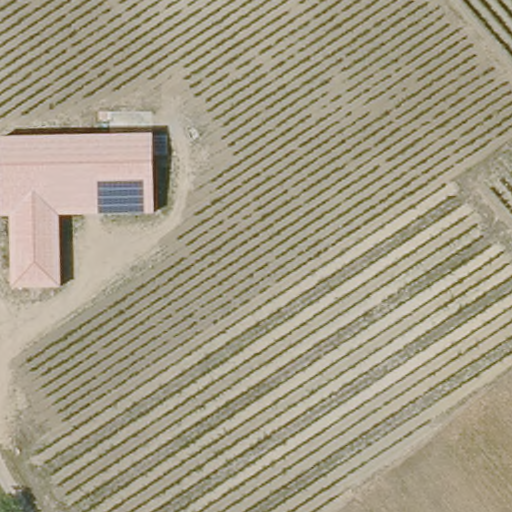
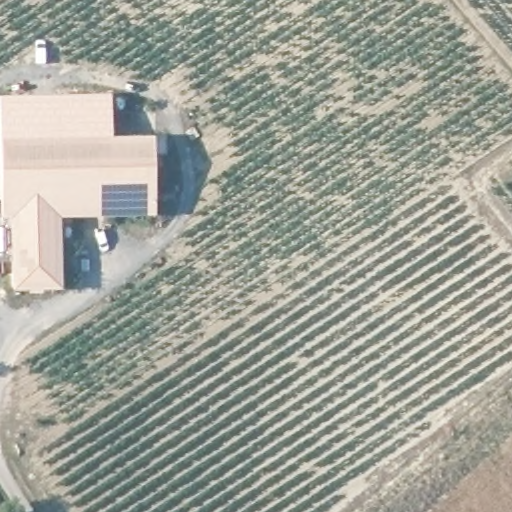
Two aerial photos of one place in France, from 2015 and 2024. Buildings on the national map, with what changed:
new [(0,138),(0,96),(110,93),(112,136),(0,138)]
unchanged [(62,215),(61,289),(13,289),(12,220),(1,219),(0,192),(0,138),(154,136),(156,213),(62,215)]

